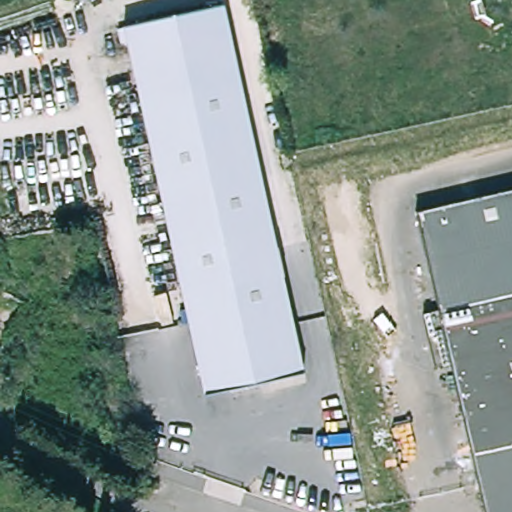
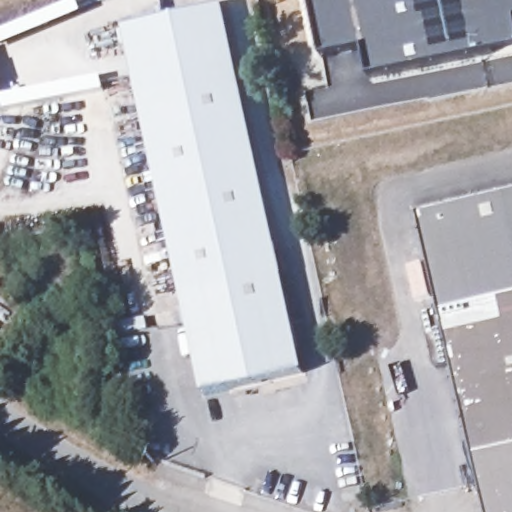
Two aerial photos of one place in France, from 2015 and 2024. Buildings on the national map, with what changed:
new [(372,76),(366,47),(325,55),(313,0),(512,0),(512,47),(372,76)]
unchanged [(227,9),(305,379),(208,399),(129,30),(227,9)]
unchanged [(487,512),(457,362),(442,366),(431,310),(447,307),(427,209),(512,192),(512,512),(487,512)]
unchanged [(18,241),(22,271),(5,272),(2,243),(18,241)]
unchanged [(121,381),(110,384),(107,374),(117,371),(121,381)]

